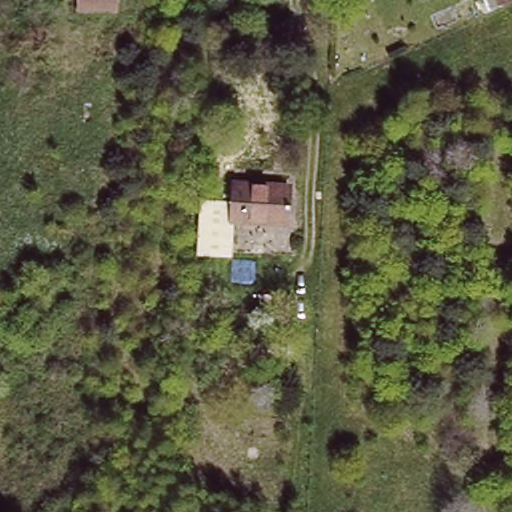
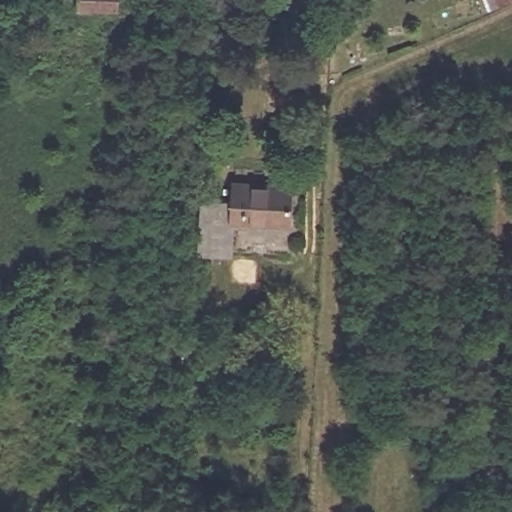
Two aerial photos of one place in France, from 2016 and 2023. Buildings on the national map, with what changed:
unchanged [(124,0),(122,6),(80,6),(80,0),(124,0)]
unchanged [(512,0),(512,3),(482,14),(475,0),(512,0)]
unchanged [(202,195),(235,198),(237,180),(288,184),(285,219),(235,216),(232,254),(198,252),(202,195)]

